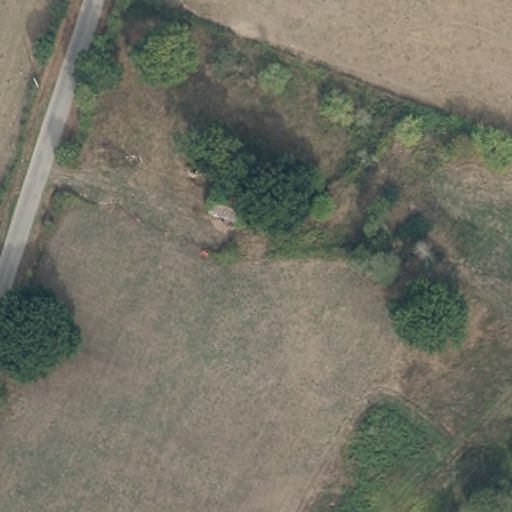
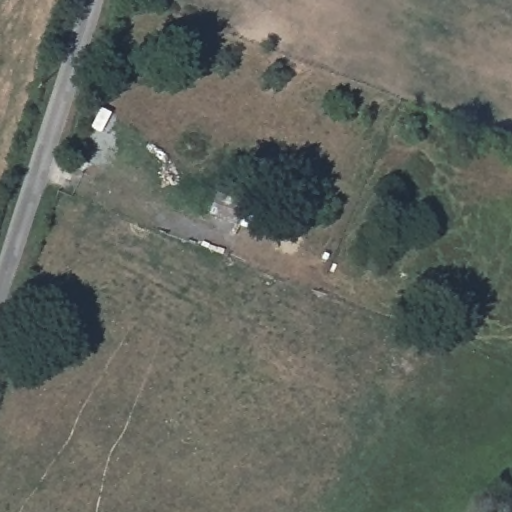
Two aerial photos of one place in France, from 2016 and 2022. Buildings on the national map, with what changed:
unchanged [(217,189),(250,201),(241,226),(209,214),(217,189)]

